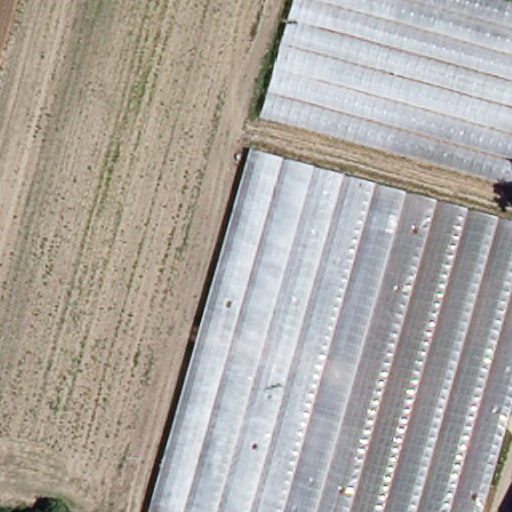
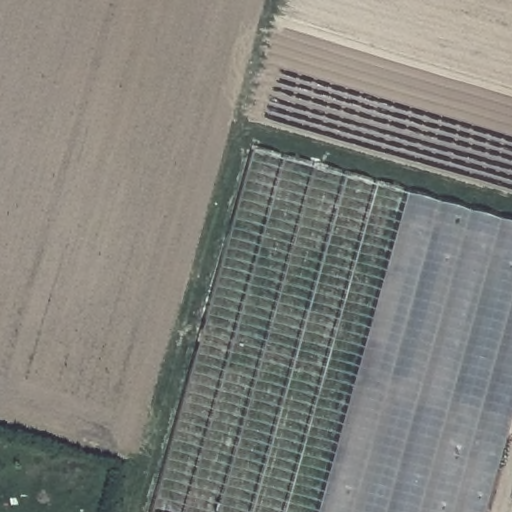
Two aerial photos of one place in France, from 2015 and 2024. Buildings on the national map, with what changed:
demolished [(496,0),(512,4),(512,184),(266,117),(300,0),(496,0)]
unchanged [(512,220),(512,411),(484,512),(152,512),(253,152),(512,220)]

